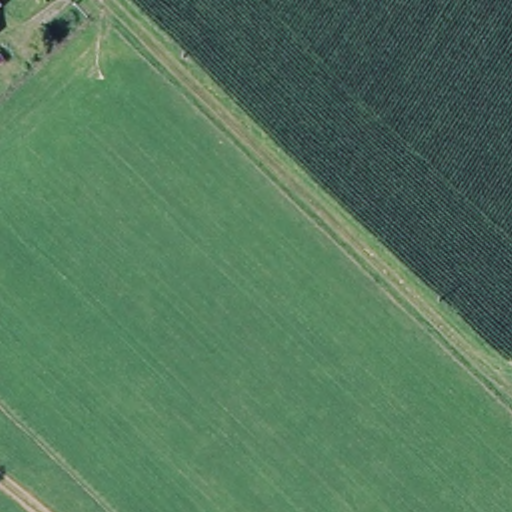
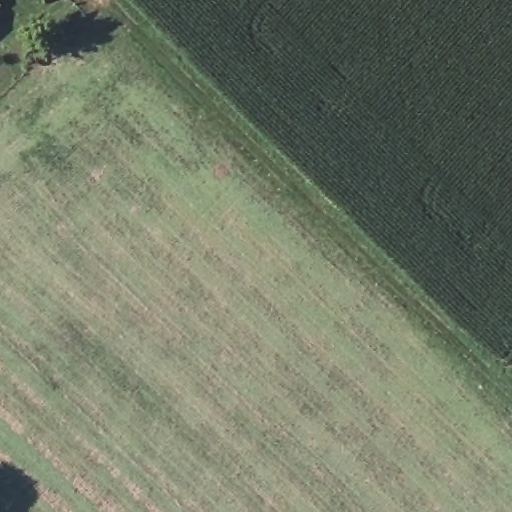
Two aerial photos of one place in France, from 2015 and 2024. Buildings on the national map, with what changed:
unchanged [(4,5),(0,8),(0,2),(4,5)]

